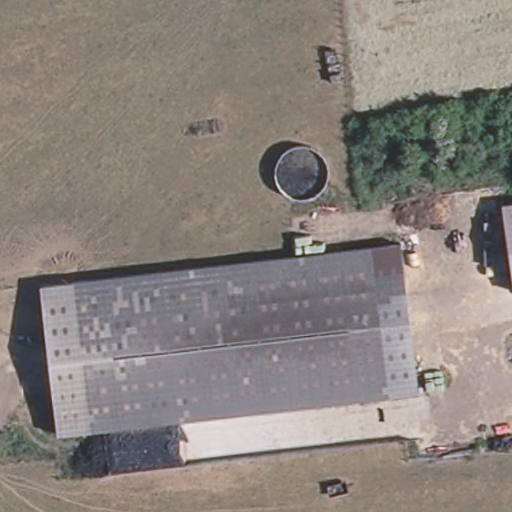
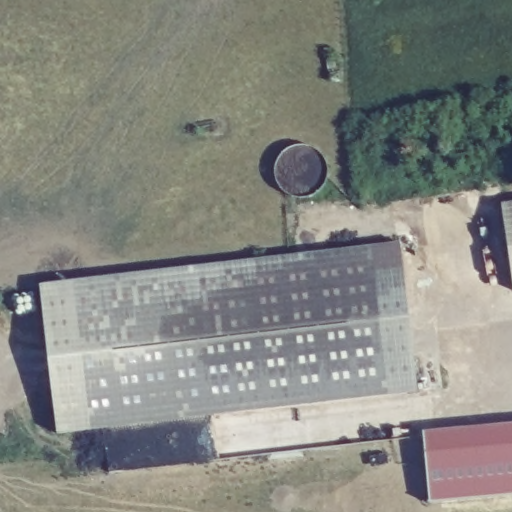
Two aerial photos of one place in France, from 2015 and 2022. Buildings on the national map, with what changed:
unchanged [(511,293),(499,207),(512,205),(512,292),(511,293)]
unchanged [(402,245),(420,394),(390,398),(371,248),(402,245)]
unchanged [(390,398),(59,436),(42,288),(295,256),(371,248),(390,398)]
new [(512,424),(512,492),(430,500),(425,432),(512,424)]

